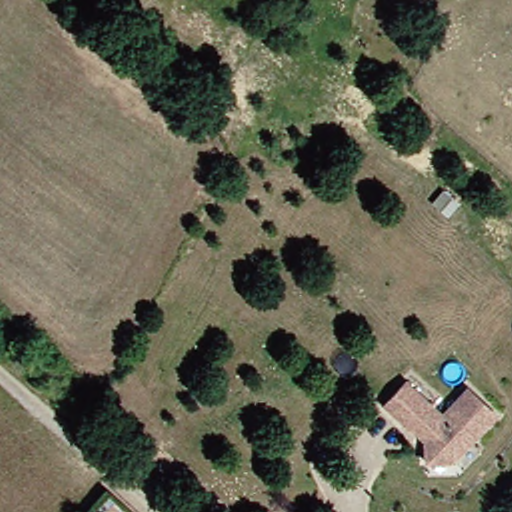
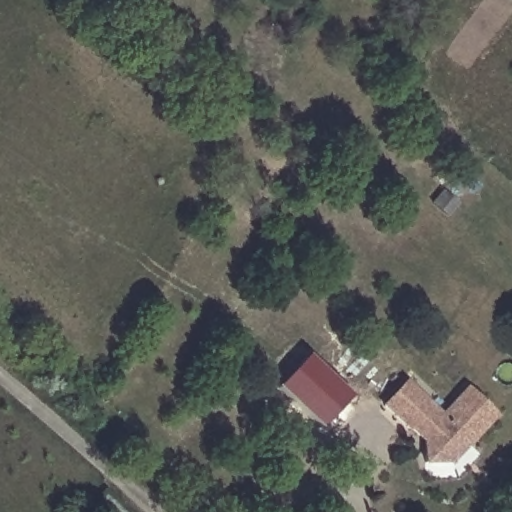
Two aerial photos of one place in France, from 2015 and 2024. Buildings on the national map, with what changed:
new [(308,355),(352,396),(322,427),(278,386),(308,355)]
unchanged [(457,459),(429,460),(429,440),(387,402),(408,378),(445,413),(471,386),(499,413),(457,459)]

